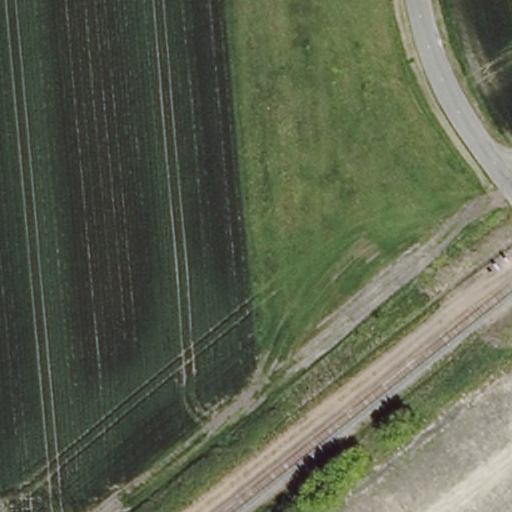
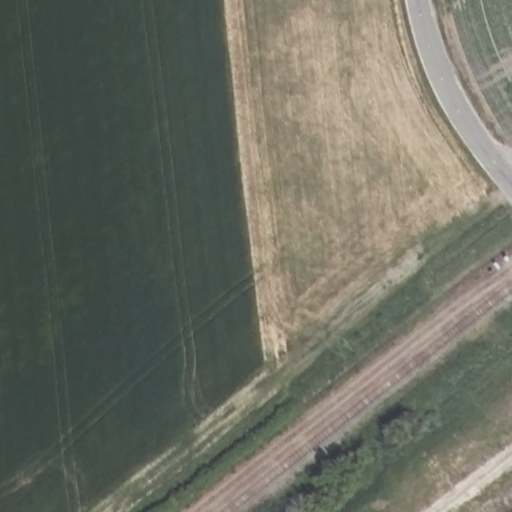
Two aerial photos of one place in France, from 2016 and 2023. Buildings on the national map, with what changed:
[]

